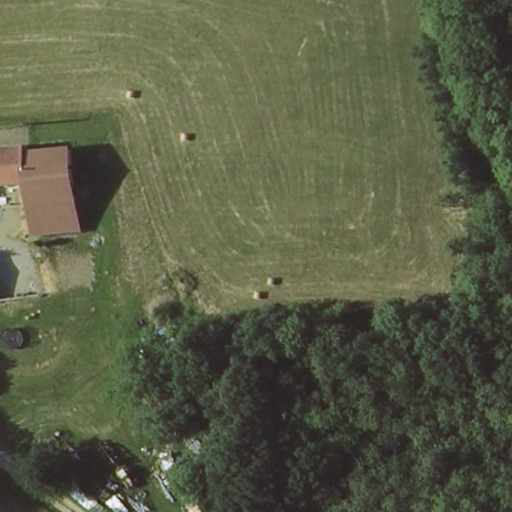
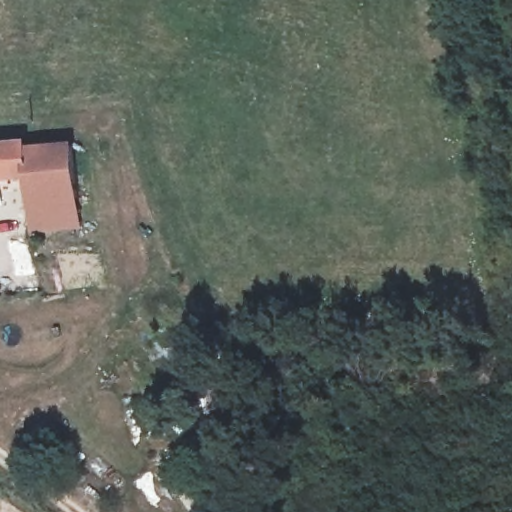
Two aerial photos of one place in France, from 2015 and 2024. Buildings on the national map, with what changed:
unchanged [(41,203),(39,183),(0,188),(0,148),(34,144),(35,154),(75,149),(81,198),(83,218),(44,223),(41,203)]

